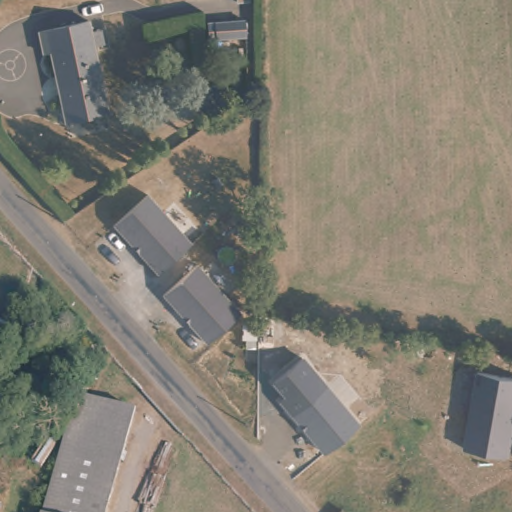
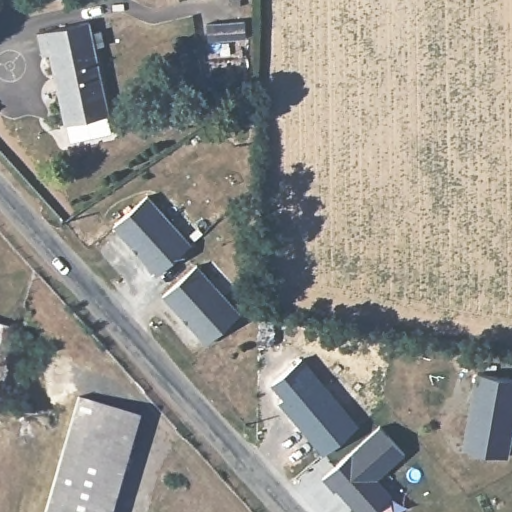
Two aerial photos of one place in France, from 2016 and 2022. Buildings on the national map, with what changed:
unchanged [(232,9),(260,9),(262,9),(261,26),(260,26),(231,25),(232,9)]
unchanged [(90,27),(111,120),(68,128),(52,57),(43,59),(39,37),(90,27)]
unchanged [(147,195),(190,243),(156,273),(113,225),(147,195)]
unchanged [(197,262),(241,310),(207,340),(164,292),(197,262)]
unchanged [(512,378),(512,434),(507,460),(461,451),(476,371),(512,378)]
unchanged [(360,424),(325,454),(292,413),(297,408),(287,397),(316,373),(360,424)]
unchanged [(136,414),(110,512),(49,512),(80,399),(136,414)]
new [(380,425),(405,452),(378,478),(392,495),(371,512),(357,512),(337,488),(335,490),(323,477),(380,425)]

